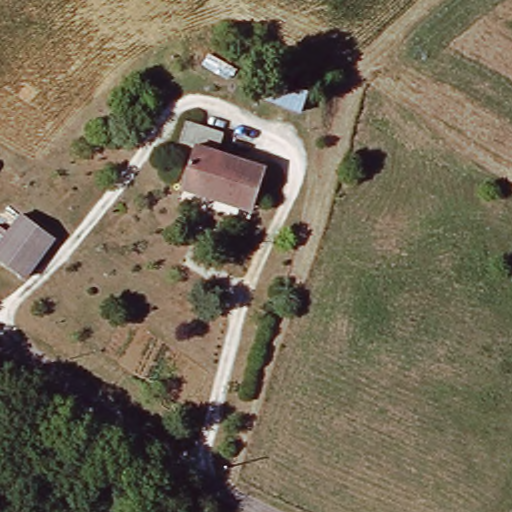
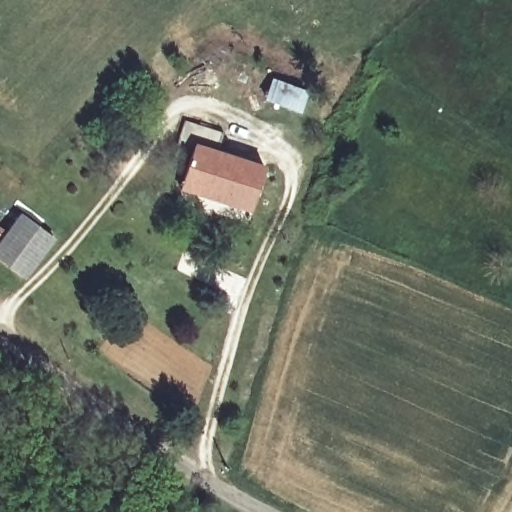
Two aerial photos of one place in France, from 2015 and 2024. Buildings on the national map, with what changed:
unchanged [(305,115),(269,102),(275,82),(313,92),(305,115)]
unchanged [(190,187),(203,148),(268,169),(256,208),(190,187)]
unchanged [(25,278),(0,259),(0,251),(25,219),(54,242),(25,278)]

